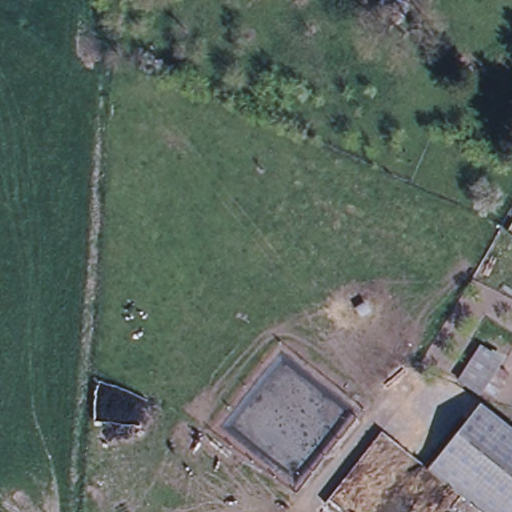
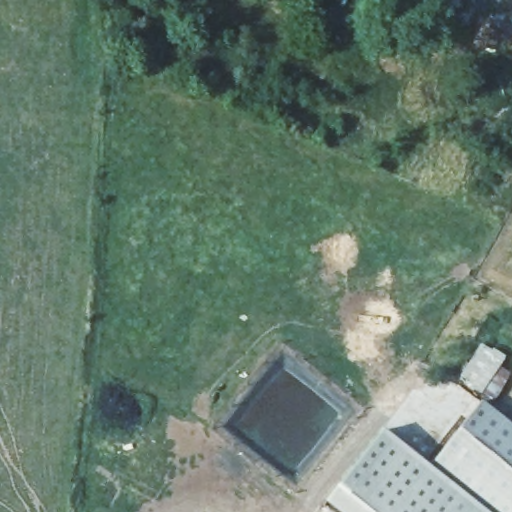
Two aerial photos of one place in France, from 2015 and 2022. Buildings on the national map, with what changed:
unchanged [(502,360),(480,393),(460,381),(482,347),(502,360)]
unchanged [(481,404),(512,429),(512,431),(470,502),(429,469),(481,404)]
unchanged [(470,502),(512,431),(512,512),(482,512),(470,502)]
new [(324,504),(382,433),(429,469),(470,502),(482,512),(334,512),(324,504)]

